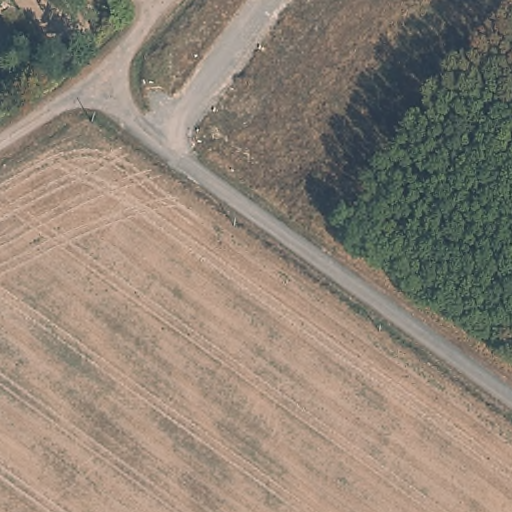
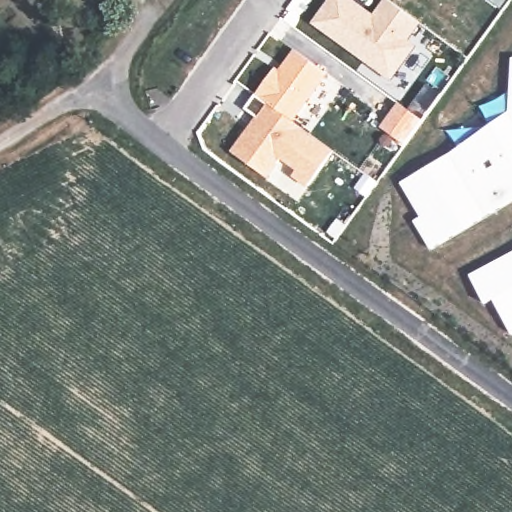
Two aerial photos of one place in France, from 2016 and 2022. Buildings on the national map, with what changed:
new [(328,0),(354,0),(373,15),(384,0),(391,0),(420,21),(409,39),(416,45),(390,82),(311,24),(328,0)]
new [(258,116),(246,107),(274,68),(280,71),(294,51),(326,73),(292,120),(332,150),(306,187),(293,178),(297,171),(280,159),(267,177),(231,151),(258,116)]
new [(413,222),(420,217),(400,182),(509,112),(512,57),(512,199),(430,247),(413,222)]
new [(511,334),(491,298),(483,302),(469,272),(512,251),(512,333),(511,334)]

